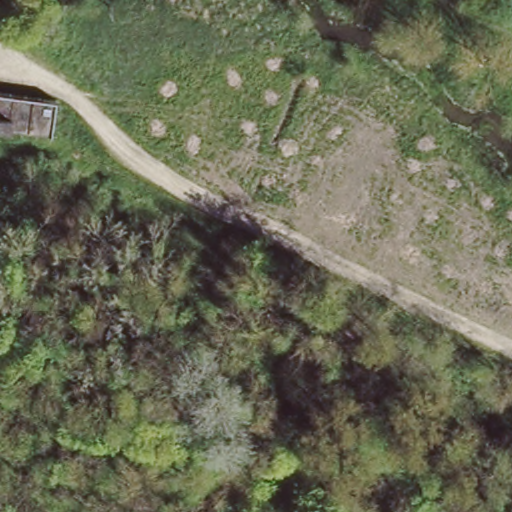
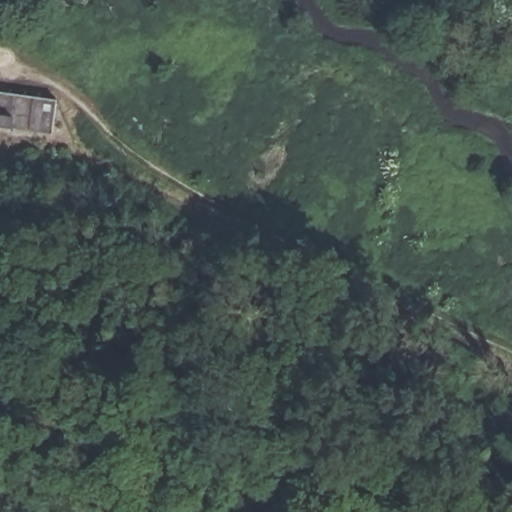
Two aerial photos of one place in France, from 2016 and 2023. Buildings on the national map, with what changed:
unchanged [(53,101),(51,118),(48,135),(0,128),(0,93),(53,101)]

